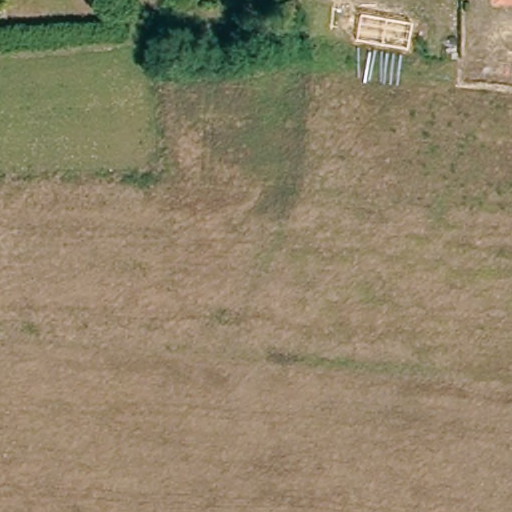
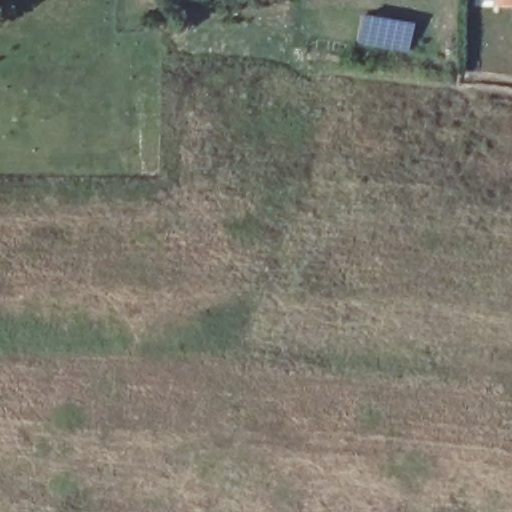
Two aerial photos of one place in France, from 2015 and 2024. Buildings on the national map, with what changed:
unchanged [(512,0),(512,7),(493,7),(493,0),(512,0)]
new [(412,22),(407,51),(356,42),(361,14),(412,22)]

